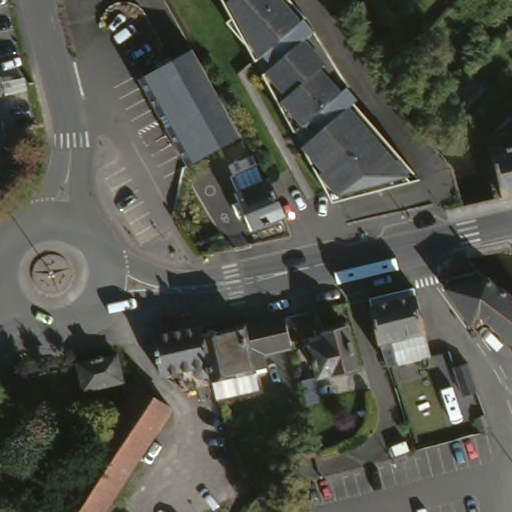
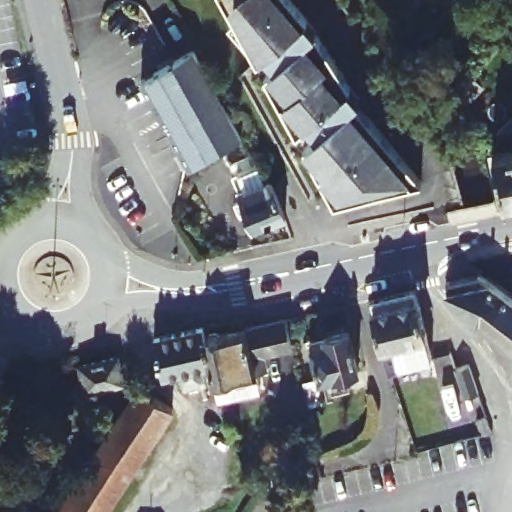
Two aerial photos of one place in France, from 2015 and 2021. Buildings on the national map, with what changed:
unchanged [(221,0),(287,0),(308,26),(306,27),(316,39),(352,86),(351,87),(366,105),(361,108),(422,180),(338,203),(331,204),(260,71),(221,0)]
unchanged [(203,63),(166,84),(182,114),(174,119),(196,161),(190,163),(143,78),(195,49),(203,63)]
unchanged [(219,94),(223,101),(242,136),(196,161),(174,119),(182,114),(166,84),(203,63),(219,94)]
unchanged [(472,73),(484,84),(466,103),(455,92),(472,73)]
unchanged [(505,197),(495,154),(512,150),(512,196),(505,197)]
unchanged [(264,183),(289,215),(251,233),(231,203),(264,183)]
unchanged [(476,269),(512,298),(512,341),(476,313),(467,319),(445,293),(440,283),(441,281),(442,279),(445,276),(476,269)]
unchanged [(380,351),(368,305),(413,295),(431,363),(389,374),(380,351)]
unchanged [(217,396),(212,381),(211,374),(208,363),(200,333),(201,333),(241,324),(252,321),(279,315),(286,342),(258,349),(262,367),(252,370),(255,385),(217,396)]
unchanged [(197,321),(201,333),(200,333),(208,363),(211,374),(200,376),(200,382),(175,388),(171,369),(158,372),(151,343),(149,332),(197,321)]
unchanged [(355,363),(317,374),(309,341),(325,337),(324,332),(346,327),(355,363)]
unchanged [(118,351),(125,378),(84,388),(78,361),(118,351)]
unchanged [(455,364),(467,360),(477,388),(464,392),(455,364)]
unchanged [(138,386),(172,408),(104,512),(55,512),(108,431),(138,386)]
unchanged [(490,427),(477,430),(473,417),(485,413),(490,427)]

